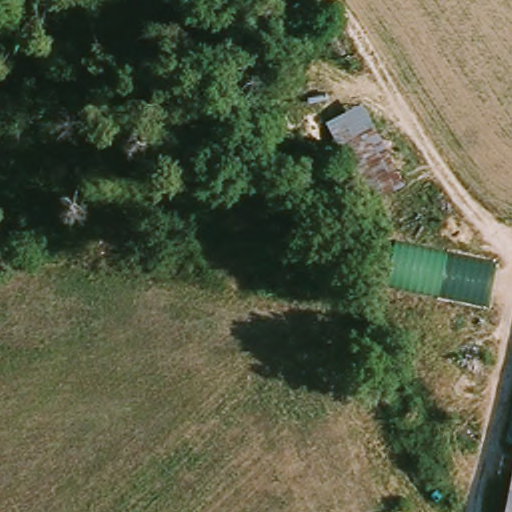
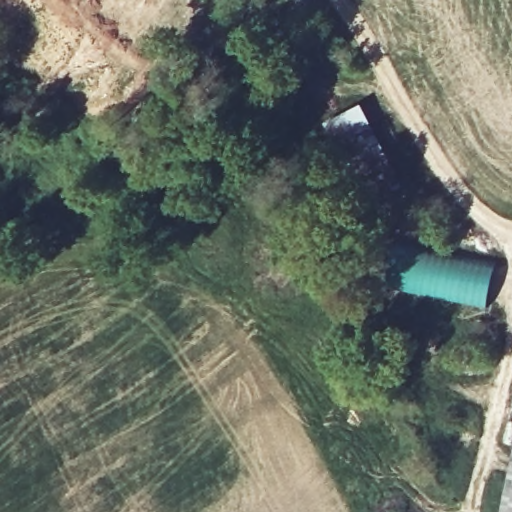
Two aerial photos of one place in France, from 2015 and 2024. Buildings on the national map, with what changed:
unchanged [(364,100),(409,185),(372,204),(325,119),(364,100)]
unchanged [(508,257),(500,302),(397,285),(408,237),(508,257)]
unchanged [(507,512),(512,484),(512,512),(507,512)]

